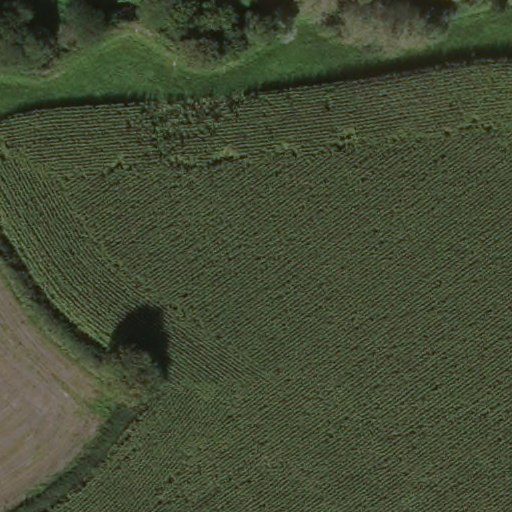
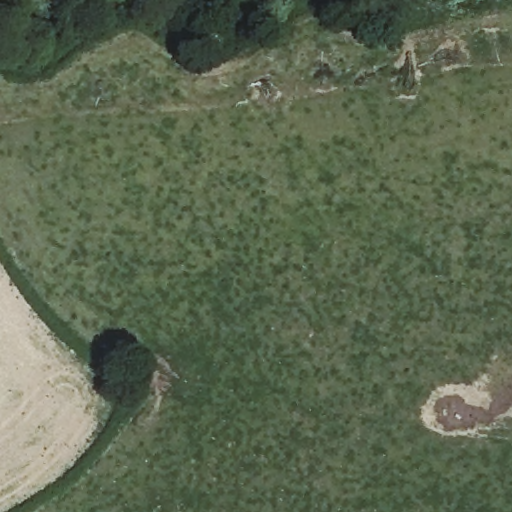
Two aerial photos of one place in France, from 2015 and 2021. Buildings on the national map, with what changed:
[]

